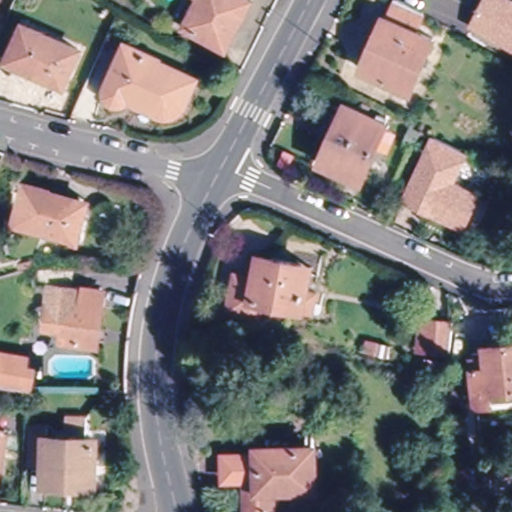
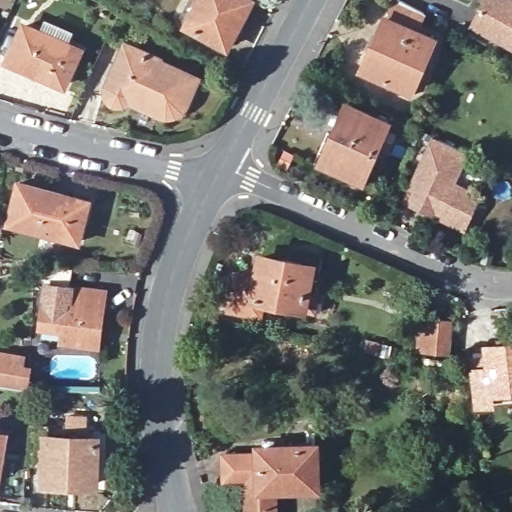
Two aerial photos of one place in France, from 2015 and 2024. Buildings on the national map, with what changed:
unchanged [(202,0),(241,0),(251,5),(230,47),(189,26),(202,0)]
unchanged [(407,31),(425,38),(402,90),(357,71),(388,0),(398,0),(417,9),(407,31)]
unchanged [(484,0),(512,0),(512,43),(472,22),(484,0)]
unchanged [(19,34),(75,56),(64,85),(7,62),(19,34)]
unchanged [(125,47),(194,81),(180,110),(167,119),(119,101),(117,108),(100,96),(125,47)]
unchanged [(345,111),(387,127),(367,179),(326,163),(345,111)]
unchanged [(471,156),(456,186),(482,199),(466,232),(407,203),(437,141),(471,156)]
unchanged [(80,239),(11,224),(20,185),(73,197),(70,210),(86,213),(80,239)]
unchanged [(257,317),(228,313),(232,274),(253,276),(256,257),(307,263),(304,293),(312,294),(311,311),(259,304),(257,317)]
unchanged [(81,300),(112,303),(107,346),(74,342),(75,334),(52,331),(57,293),(34,290),(35,262),(85,263),(81,300)]
unchanged [(423,350),(422,321),(454,320),(452,349),(423,350)]
unchanged [(482,391),(482,367),(501,366),(500,345),(512,345),(512,390),(482,391)]
unchanged [(0,347),(30,353),(25,379),(24,383),(6,380),(0,380),(0,347)]
unchanged [(55,431),(55,438),(102,440),(100,486),(51,484),(52,465),(32,464),(34,430),(55,431)]
unchanged [(0,477),(0,435),(7,436),(0,477)]
unchanged [(325,489),(281,491),(280,512),(255,512),(254,485),(230,486),(229,462),(271,460),(271,451),(323,448),(325,489)]

